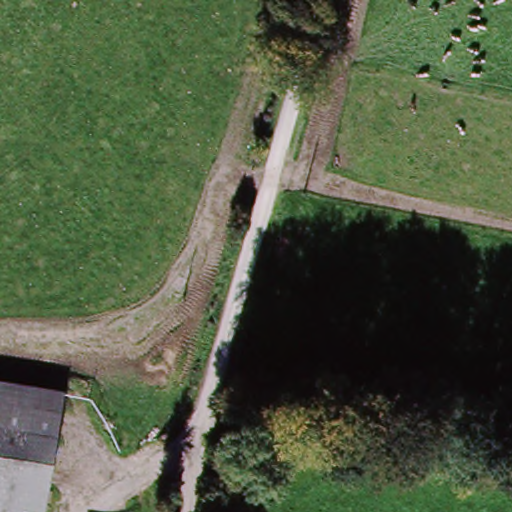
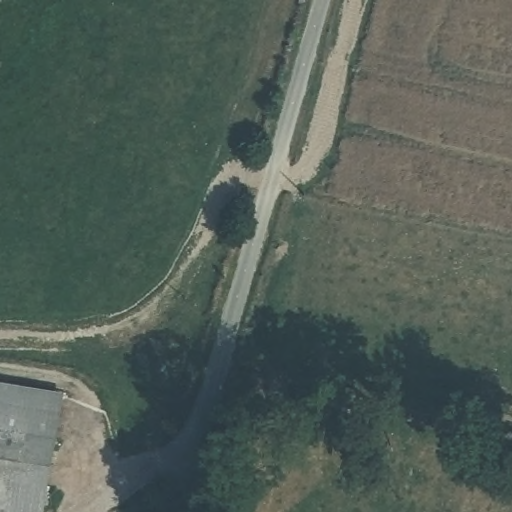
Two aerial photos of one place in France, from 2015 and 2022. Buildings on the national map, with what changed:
unchanged [(0,384),(62,395),(55,437),(27,432),(0,428),(0,384)]
unchanged [(12,512),(0,512),(0,428),(27,432),(12,512)]
unchanged [(27,432),(55,437),(41,512),(12,512),(27,432)]

